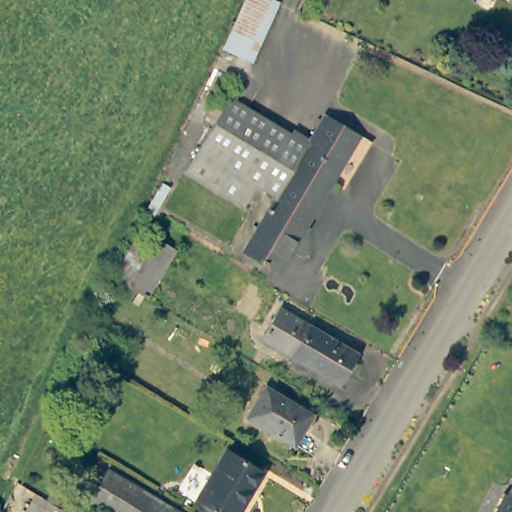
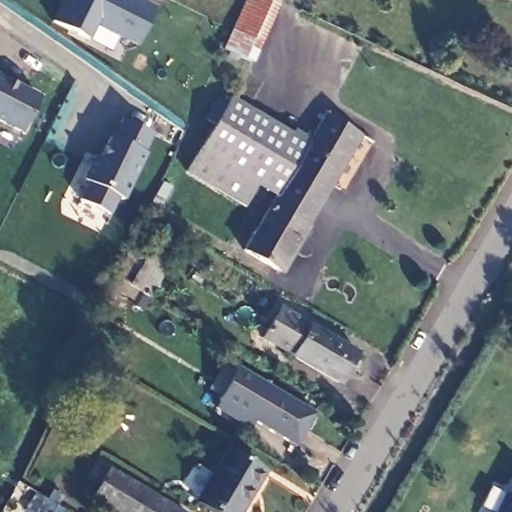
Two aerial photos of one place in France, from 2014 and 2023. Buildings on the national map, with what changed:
new [(137,45),(95,24),(87,40),(52,23),(60,6),(63,0),(139,0),(156,8),(137,45)]
unchanged [(246,0),(274,0),(278,2),(248,62),(223,49),(232,31),(246,0)]
new [(38,97),(20,133),(0,123),(0,78),(38,97)]
unchanged [(246,204),(189,167),(235,95),(311,142),(279,192),(261,181),(251,197),(246,204)]
unchanged [(279,192),(311,142),(329,114),(363,135),(306,225),(271,207),(280,192),(279,192)]
new [(87,184),(81,181),(93,157),(99,160),(110,137),(113,139),(122,120),(151,134),(141,153),(144,155),(121,201),(115,199),(106,216),(77,202),(87,184)]
unchanged [(246,246),(271,207),(306,225),(279,267),(246,246)]
unchanged [(171,247),(143,295),(112,277),(113,274),(114,272),(119,258),(130,237),(146,247),(152,237),(171,247)]
unchanged [(260,340),(278,308),(355,353),(336,385),(260,340)]
unchanged [(245,413),(265,379),(310,406),(290,440),(245,413)]
unchanged [(261,470),(236,512),(216,512),(195,500),(226,447),(261,470)]
unchanged [(176,512),(106,512),(90,502),(108,472),(176,512)]
unchanged [(501,490),(505,492),(512,477),(512,512),(489,512),(501,490)]
unchanged [(44,499),(62,510),(60,512),(36,512),(44,499)]

